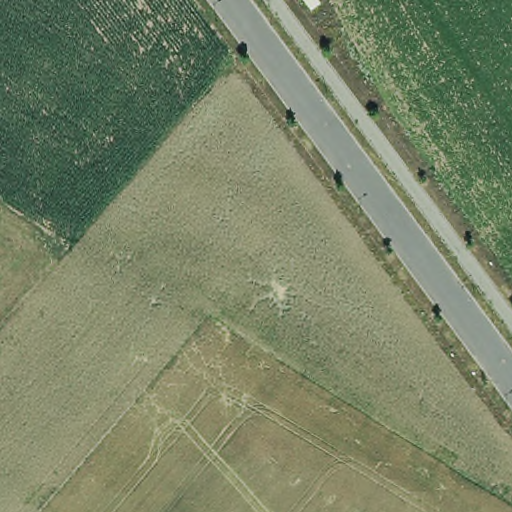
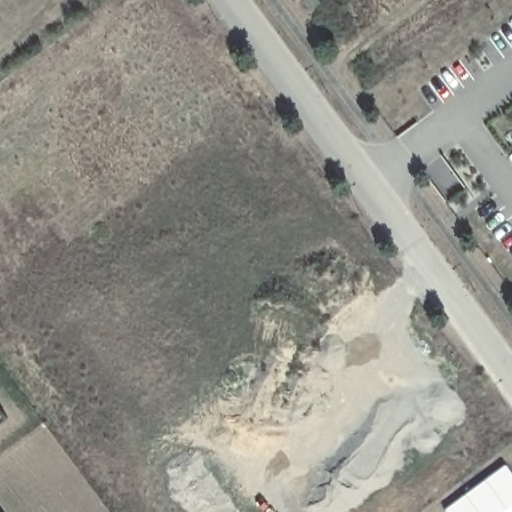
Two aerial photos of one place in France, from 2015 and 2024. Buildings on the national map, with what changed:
new [(447,512),(507,469),(512,476),(512,512),(447,512)]

